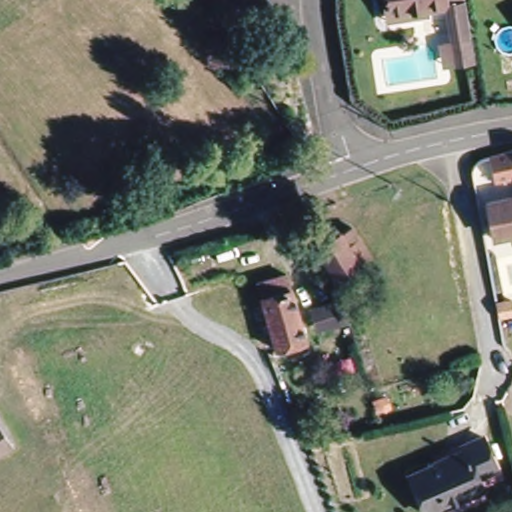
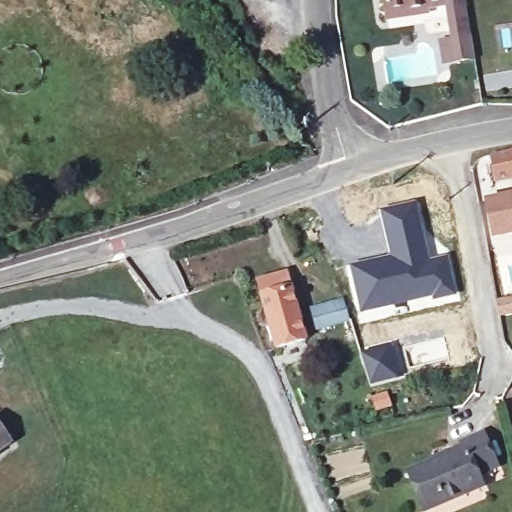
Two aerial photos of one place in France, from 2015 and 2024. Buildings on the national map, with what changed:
unchanged [(475,54),(444,59),(440,38),(452,36),(446,1),(428,4),(429,8),(387,15),(385,0),(467,0),(475,54)]
unchanged [(266,62),(259,51),(270,44),(277,55),(266,62)]
unchanged [(490,156),(512,150),(512,178),(495,182),(490,156)]
unchanged [(486,202),(512,197),(512,234),(494,238),(486,202)]
new [(389,255),(379,213),(417,202),(430,252),(432,251),(434,256),(448,253),(458,295),(432,301),(431,298),(361,313),(349,266),(389,255)]
demolished [(341,233),(352,226),(370,255),(336,278),(316,248),(332,237),(340,232),(341,233)]
unchanged [(332,237),(330,234),(338,228),(340,232),(332,237)]
unchanged [(306,339),(277,347),(257,282),(287,273),(306,339)]
unchanged [(496,303),(496,302),(512,299),(512,313),(498,316),(496,303)]
unchanged [(349,321),(318,330),(312,309),(343,300),(349,321)]
new [(396,339),(406,375),(370,385),(359,350),(396,339)]
unchanged [(377,410),(373,399),(386,395),(390,406),(377,410)]
unchanged [(0,452),(0,428),(11,445),(0,452)]
unchanged [(482,487),(425,512),(408,472),(462,449),(460,444),(483,434),(497,467),(478,475),(482,487)]

